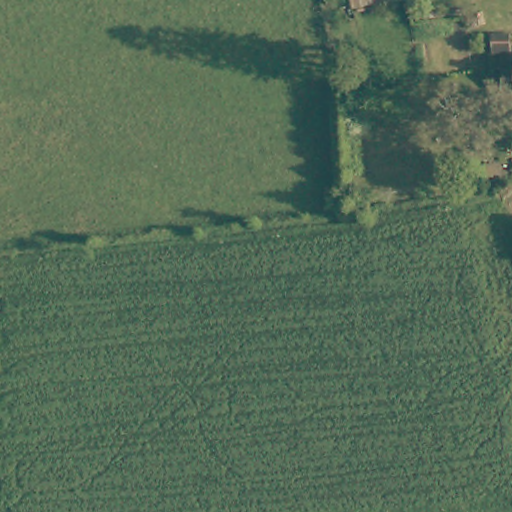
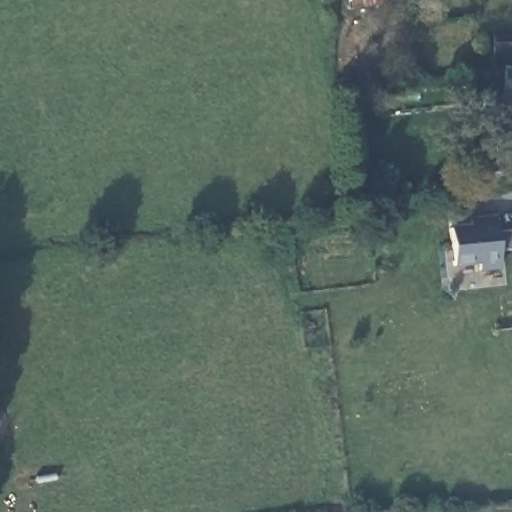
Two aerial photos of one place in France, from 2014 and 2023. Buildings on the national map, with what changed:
unchanged [(486,32),(501,32),(501,45),(483,46),(483,32),(486,32)]
unchanged [(502,77),(512,77),(512,96),(501,95),(502,77)]
new [(469,218),(494,216),(496,232),(512,231),(512,251),(498,252),(500,269),(479,272),(478,264),(469,266),(468,265),(454,266),(452,267),(448,227),(469,225),(469,218)]

